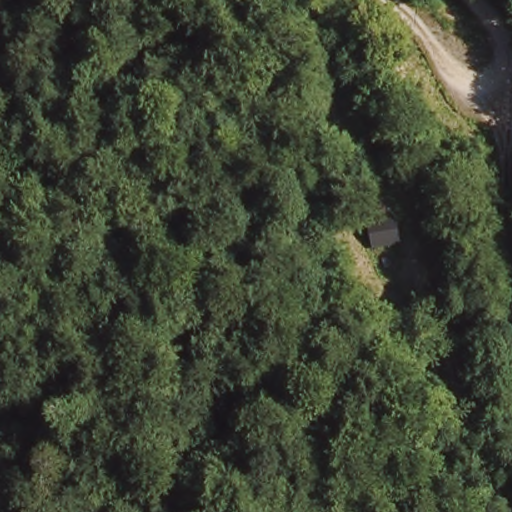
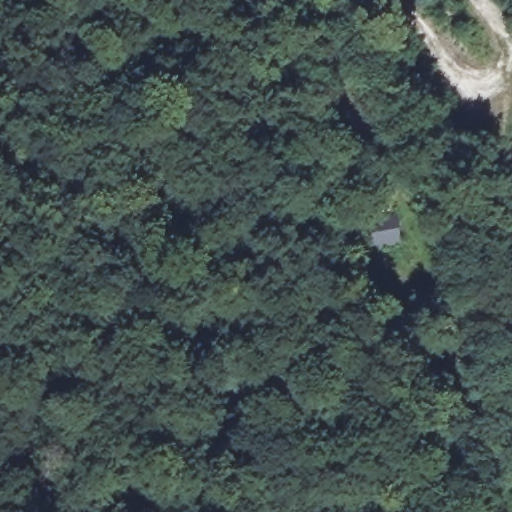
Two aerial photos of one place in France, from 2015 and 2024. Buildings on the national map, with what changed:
unchanged [(398,219),(401,242),(373,246),(370,224),(398,219)]

